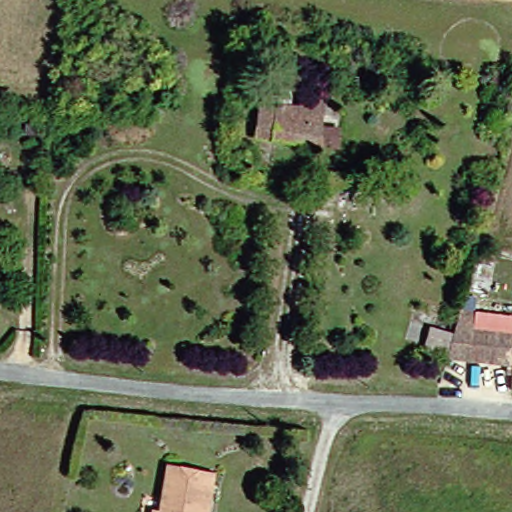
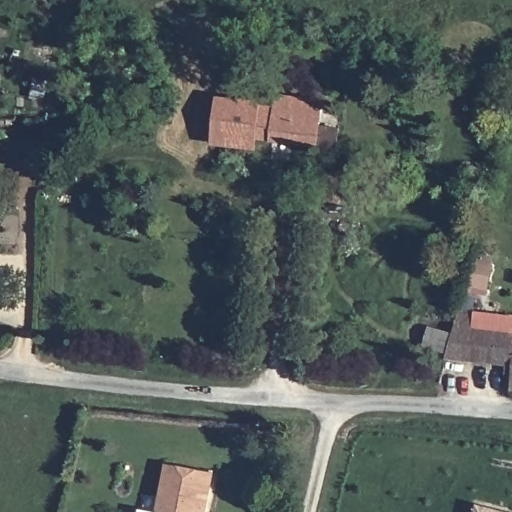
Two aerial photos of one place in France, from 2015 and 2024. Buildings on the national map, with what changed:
new [(258,139),(257,150),(210,144),(216,95),(275,104),(276,97),(294,99),(291,113),(269,109),(264,140),(258,139)]
unchanged [(329,153),(308,150),(264,145),(269,109),(291,113),(294,99),(314,101),(310,132),(331,134),(329,153)]
unchanged [(319,193),(320,185),(320,177),(348,180),(346,188),(346,199),(319,193)]
unchanged [(422,349),(428,332),(451,340),(454,334),(455,310),(468,311),(467,335),(510,339),(509,362),(512,362),(512,396),(508,396),(509,369),(443,364),(445,357),(422,349)]
unchanged [(157,469),(205,473),(201,512),(154,512),(157,469)]
new [(477,508),(491,512),(476,512),(477,508)]

